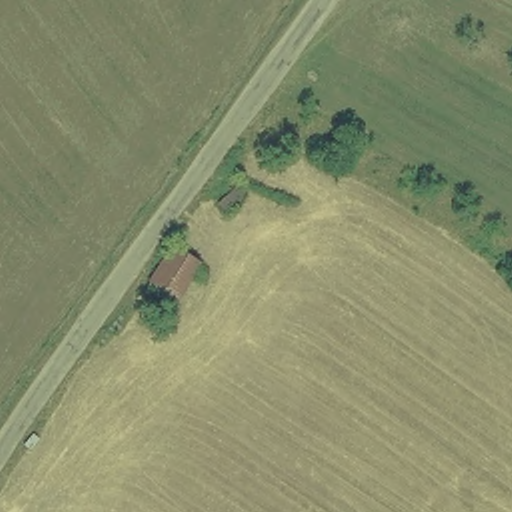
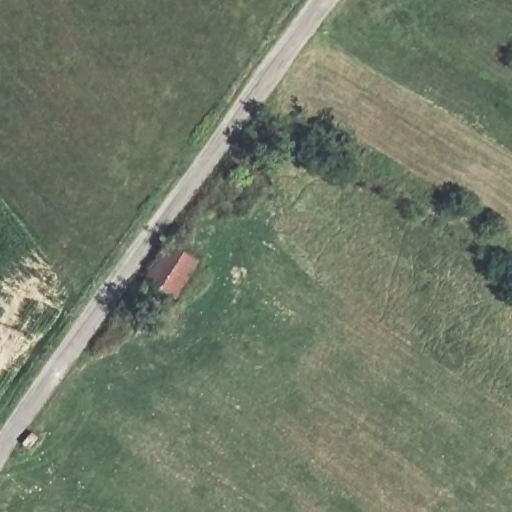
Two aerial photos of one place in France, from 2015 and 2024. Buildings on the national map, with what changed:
unchanged [(182,299),(152,283),(173,246),(203,263),(182,299)]

